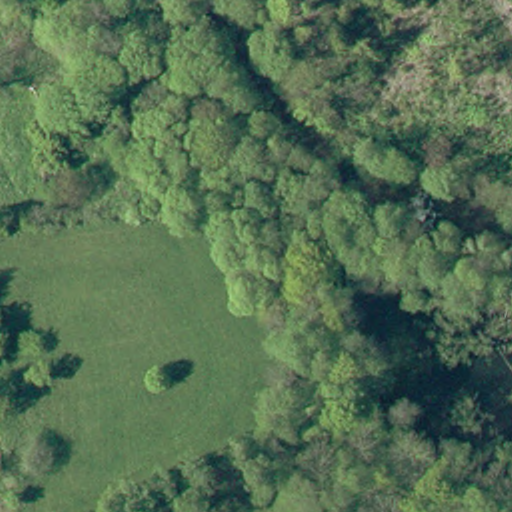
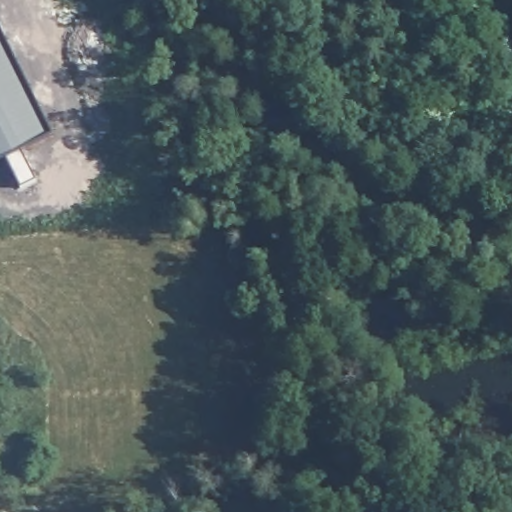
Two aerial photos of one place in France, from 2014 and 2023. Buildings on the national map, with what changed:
new [(0,156),(0,43),(42,132),(0,156)]

